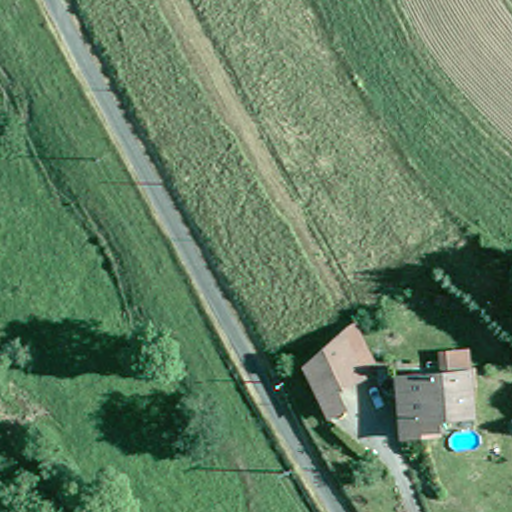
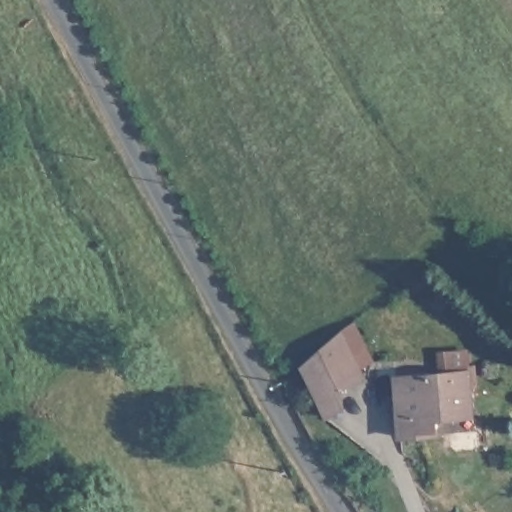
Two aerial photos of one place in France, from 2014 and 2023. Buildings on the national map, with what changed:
unchanged [(375,362),(364,368),(367,377),(340,394),(350,410),(327,422),(298,366),(355,318),(375,362)]
unchanged [(428,435),(405,437),(398,395),(395,377),(409,374),(468,363),(476,410),(458,413),(442,416),(444,427),(445,432),(428,435)]

